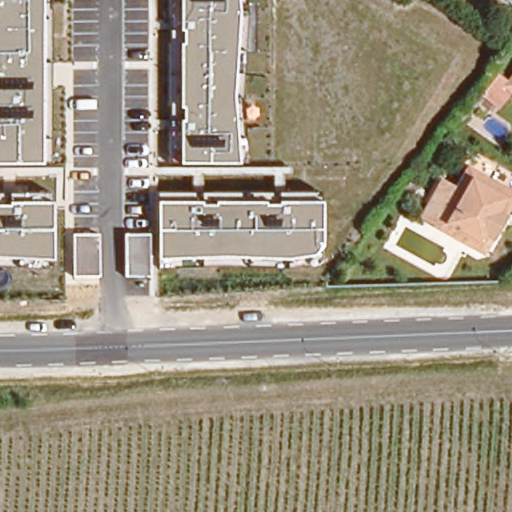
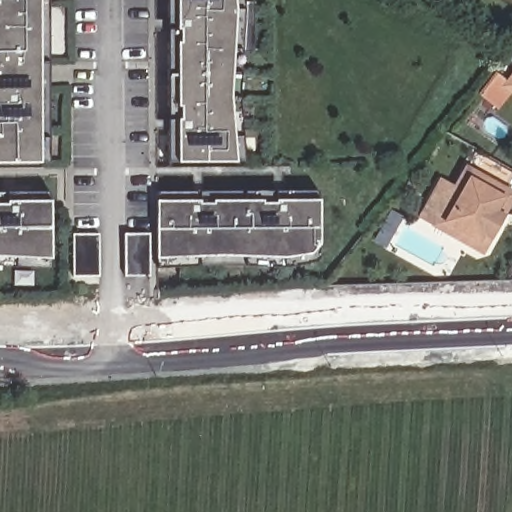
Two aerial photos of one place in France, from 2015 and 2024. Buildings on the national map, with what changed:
unchanged [(41,163),(0,163),(0,0),(50,0),(51,162),(41,163)]
unchanged [(243,0),(243,3),(252,3),(253,52),(243,53),(239,95),(246,162),(237,162),(179,163),(167,164),(167,0),(243,0)]
unchanged [(495,106),(478,94),(494,74),(508,86),(512,81),(512,89),(510,88),(495,106)]
unchanged [(446,209),(471,164),(484,172),(512,188),(512,199),(508,205),(477,262),(430,236),(423,232),(438,204),(446,209)]
unchanged [(157,258),(157,200),(157,193),(193,192),(193,199),(201,200),(202,194),(241,192),(241,200),(248,200),(248,192),(271,191),(271,203),(277,203),(277,200),(277,192),(318,191),(319,199),(320,244),(320,257),(313,264),(284,269),(217,265),(158,269),(157,258)]
unchanged [(50,202),(51,259),(51,268),(0,265),(0,193),(1,193),(0,205),(9,205),(9,200),(9,194),(49,192),(50,202)]
unchanged [(149,233),(150,275),(125,276),(125,234),(149,233)]
unchanged [(100,277),(74,277),(73,235),(100,234),(100,277)]

